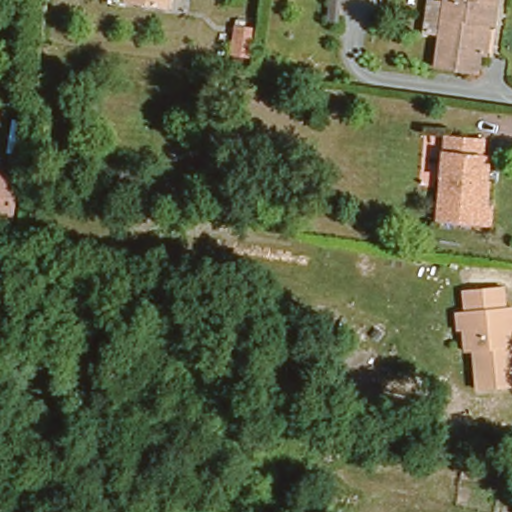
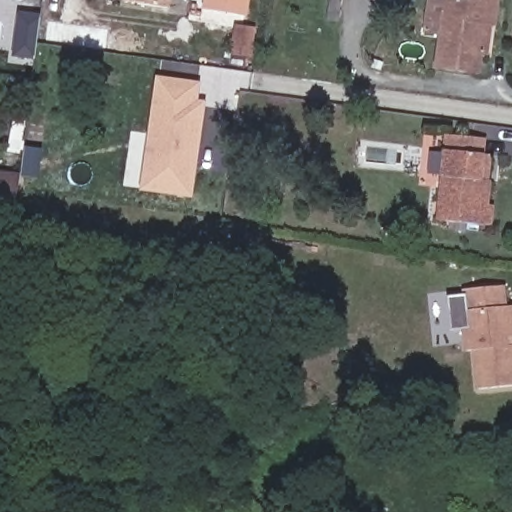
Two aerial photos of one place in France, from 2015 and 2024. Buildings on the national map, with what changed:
unchanged [(118,1),(119,0),(164,0),(163,7),(118,1)]
new [(205,0),(250,0),(247,17),(203,10),(205,0)]
unchanged [(436,62),(444,25),(423,22),(427,0),(445,0),(447,0),(448,0),(496,0),(493,23),(488,53),(479,51),(476,69),(436,62)]
new [(11,59),(17,12),(40,15),(35,61),(11,59)]
new [(234,24),(256,28),(251,59),(229,55),(234,24)]
new [(139,192),(155,76),(200,82),(197,101),(206,104),(193,199),(139,192)]
unchanged [(423,129),(487,136),(483,177),(490,178),(489,203),(496,204),(494,229),(433,223),(438,185),(418,179),(423,129)]
unchanged [(17,218),(0,217),(0,172),(21,174),(17,218)]
unchanged [(460,286),(497,282),(499,304),(507,304),(510,338),(461,331),(452,329),(451,312),(463,310),(460,286)]
unchanged [(470,351),(463,352),(461,331),(510,338),(512,352),(512,382),(474,386),(470,351)]

